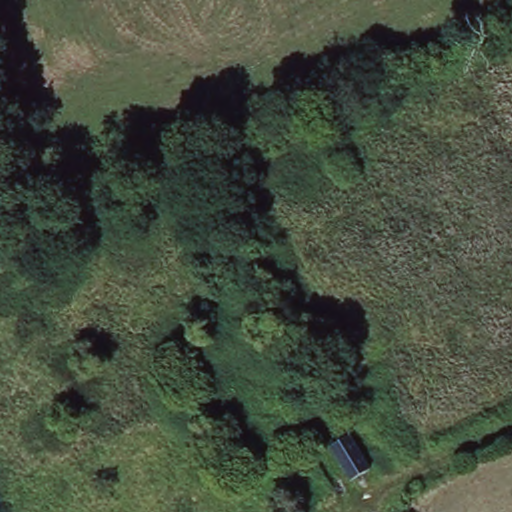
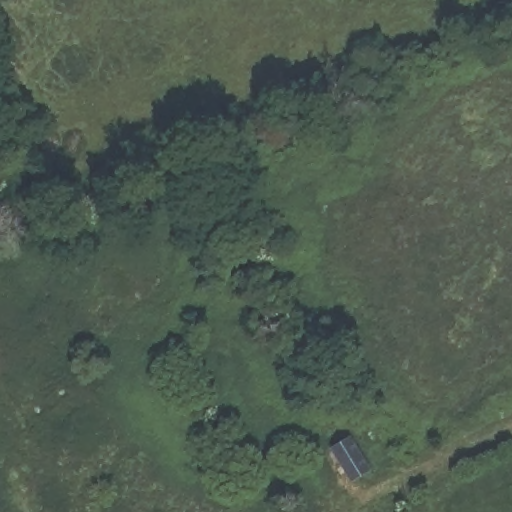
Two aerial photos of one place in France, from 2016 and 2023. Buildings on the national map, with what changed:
unchanged [(359,474),(343,484),(321,443),(336,434),(359,474)]

